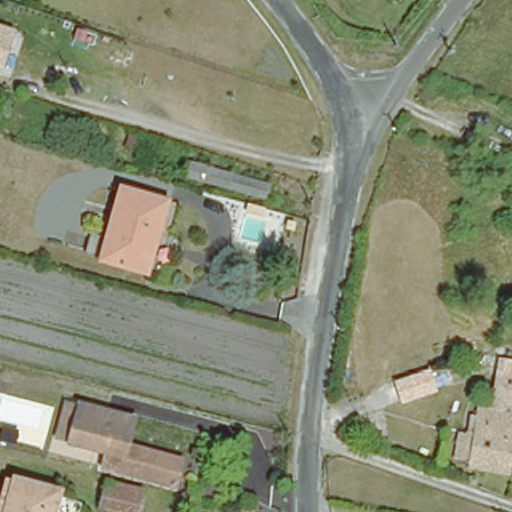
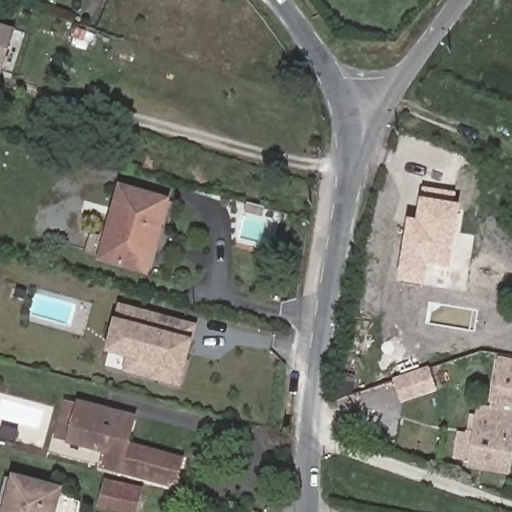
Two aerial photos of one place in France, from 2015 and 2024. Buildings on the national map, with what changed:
unchanged [(1,71),(0,71),(0,48),(7,50),(1,71)]
unchanged [(164,144),(161,159),(152,155),(150,166),(130,160),(130,152),(125,148),(127,131),(164,144)]
unchanged [(266,199),(202,182),(202,178),(191,175),(194,165),(270,184),(266,199)]
new [(451,271),(429,267),(425,289),(398,284),(408,221),(417,222),(421,200),(424,189),(456,194),(453,205),(461,207),(451,271)]
unchanged [(166,201),(147,273),(101,261),(122,190),(166,201)]
new [(194,342),(185,375),(181,389),(125,373),(128,359),(106,354),(115,321),(120,304),(199,325),(194,342)]
unchanged [(512,445),(508,470),(471,465),(480,404),(492,406),(501,361),(512,362),(512,445)]
new [(401,405),(393,379),(430,368),(439,392),(401,405)]
unchanged [(132,422),(125,448),(180,462),(173,487),(92,465),(95,454),(67,446),(55,443),(65,405),(77,408),(125,420),(132,422)]
unchanged [(7,512),(15,480),(60,492),(54,512),(7,512)]
unchanged [(106,483),(141,490),(137,512),(122,512),(101,508),(106,483)]

